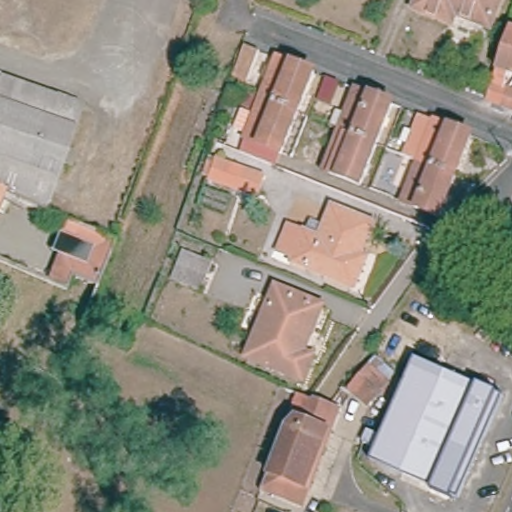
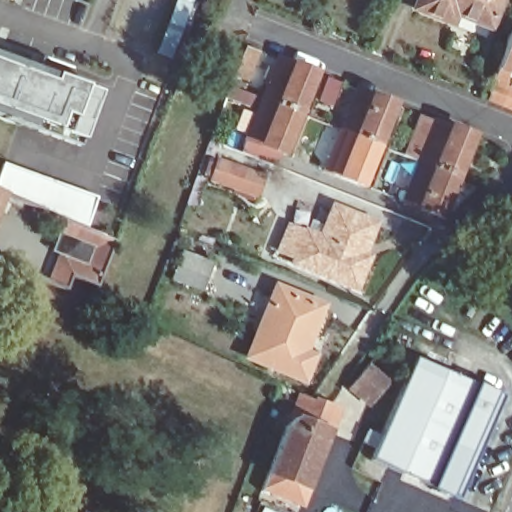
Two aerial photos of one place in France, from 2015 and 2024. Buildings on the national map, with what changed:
new [(192,0),(185,19),(192,21),(176,61),(155,53),(175,0),(192,0)]
unchanged [(459,9),(454,20),(420,7),(422,0),(501,0),(494,21),(459,9)]
unchanged [(490,99),(497,81),(501,69),(512,35),(512,73),(508,71),(506,77),(508,80),(506,85),(510,87),(512,89),(512,108),(504,105),(490,99)]
unchanged [(260,50),(249,80),(235,75),(246,45),(260,50)]
new [(83,139),(80,146),(30,129),(0,119),(0,56),(53,74),(82,85),(99,92),(83,139)]
unchanged [(317,71),(301,112),(263,98),(279,57),(317,71)]
demolished [(48,98),(82,111),(48,214),(11,199),(0,195),(0,81),(48,98)]
unchanged [(362,92),(398,108),(383,148),(347,133),(362,92)]
unchanged [(301,112),(285,152),(247,137),(263,98),(301,112)]
unchanged [(473,134),(457,175),(421,160),(437,120),(473,134)]
unchanged [(383,148),(367,187),(332,173),(347,133),(383,148)]
unchanged [(261,177),(253,197),(209,180),(216,160),(261,177)]
unchanged [(457,175),(441,215),(405,200),(421,160),(457,175)]
new [(87,226),(80,224),(65,216),(0,190),(0,170),(3,162),(99,197),(87,226)]
unchanged [(11,199),(3,217),(0,216),(0,195),(11,199)]
unchanged [(378,226),(365,265),(372,267),(364,288),(307,267),(308,263),(290,256),(300,231),(318,237),(322,225),(337,231),(344,214),(378,226)]
unchanged [(80,224),(112,236),(117,237),(93,297),(48,277),(60,251),(51,247),(65,216),(80,224)]
unchanged [(215,265),(205,293),(175,281),(186,254),(215,265)]
unchanged [(279,290),(324,306),(305,353),(315,356),(307,377),(252,357),(279,290)]
unchanged [(419,355),(480,383),(480,382),(500,390),(499,392),(506,395),(461,501),(454,498),(453,500),(433,491),(434,490),(372,463),(419,355)]
unchanged [(371,360),(388,377),(369,399),(352,382),(371,360)]
unchanged [(305,508),(284,501),(261,493),(285,431),(300,396),(315,401),(330,407),(342,412),(333,436),(330,436),(309,490),(311,491),(305,508)]

